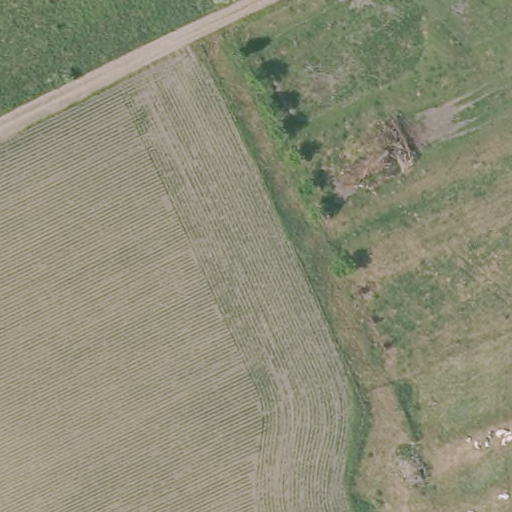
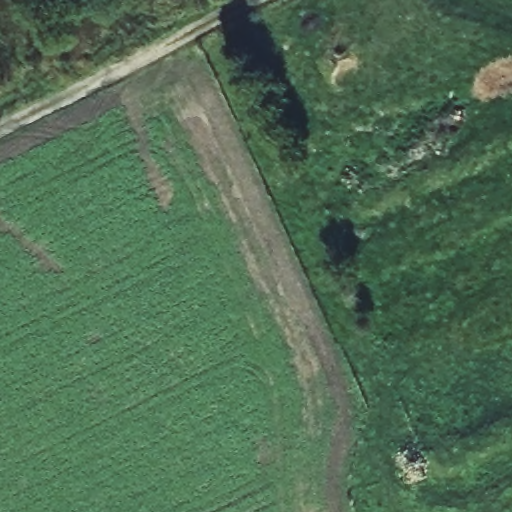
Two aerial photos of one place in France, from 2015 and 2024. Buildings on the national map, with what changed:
unchanged [(426,468),(420,472),(425,481),(412,488),(400,465),(419,454),(426,468)]

